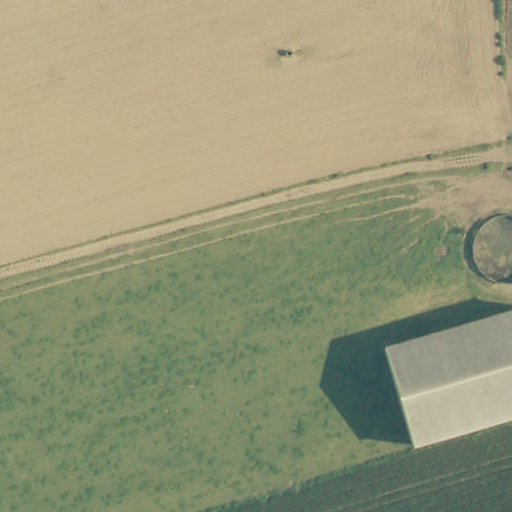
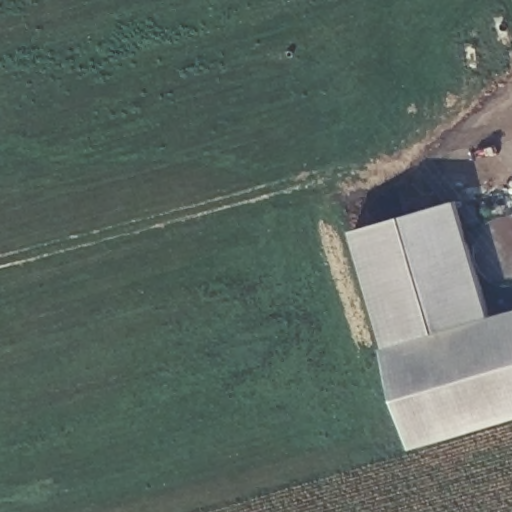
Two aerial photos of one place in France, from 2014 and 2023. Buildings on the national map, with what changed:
new [(389,353),(354,230),(457,200),(494,321),(389,353)]
unchanged [(407,451),(378,356),(512,316),(512,420),(449,439),(407,451)]

